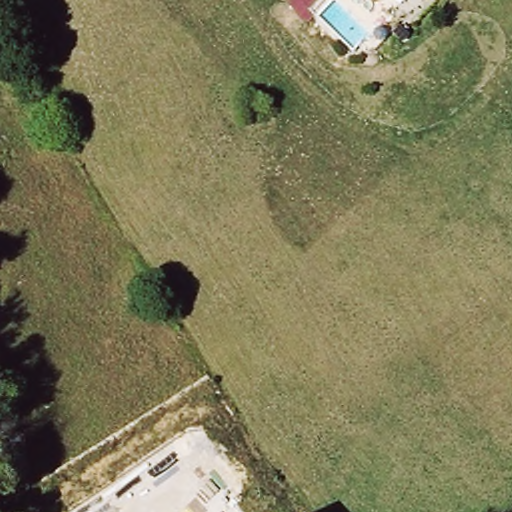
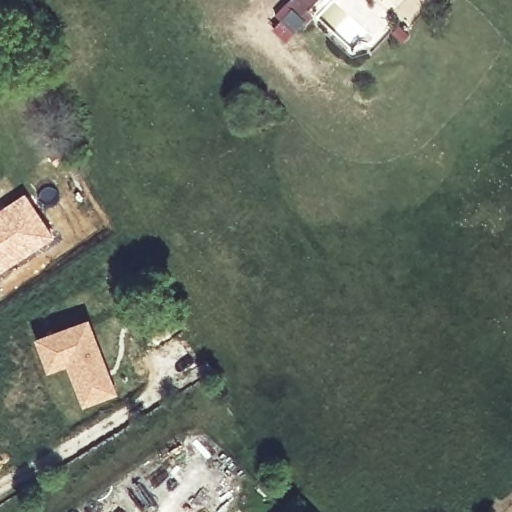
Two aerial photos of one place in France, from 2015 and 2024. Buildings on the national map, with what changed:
new [(0,270),(0,221),(29,204),(52,236),(0,270)]
new [(89,318),(117,395),(85,408),(67,366),(49,373),(36,337),(89,318)]

